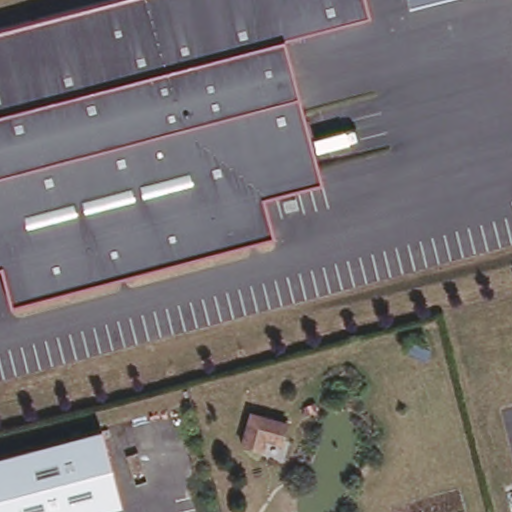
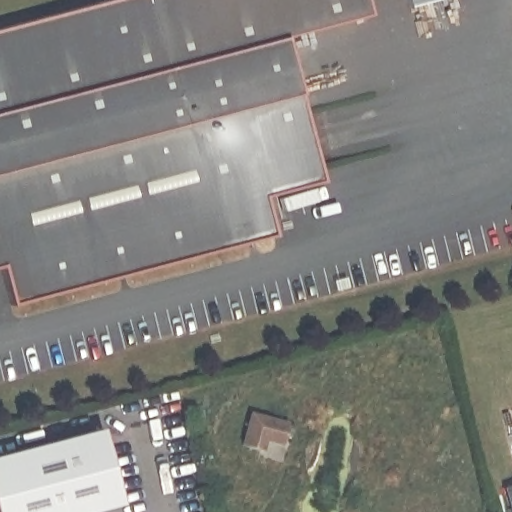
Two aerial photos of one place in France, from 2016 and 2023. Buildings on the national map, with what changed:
unchanged [(262,197),(270,236),(9,306),(0,273),(0,29),(115,0),(364,0),(367,16),(282,40),(318,182),(262,197)]
unchanged [(444,0),(408,10),(405,0),(444,0)]
unchanged [(287,423),(278,461),(261,457),(262,453),(240,447),(247,415),(287,423)]
unchanged [(119,507),(101,512),(0,512),(0,456),(99,430),(119,507)]

